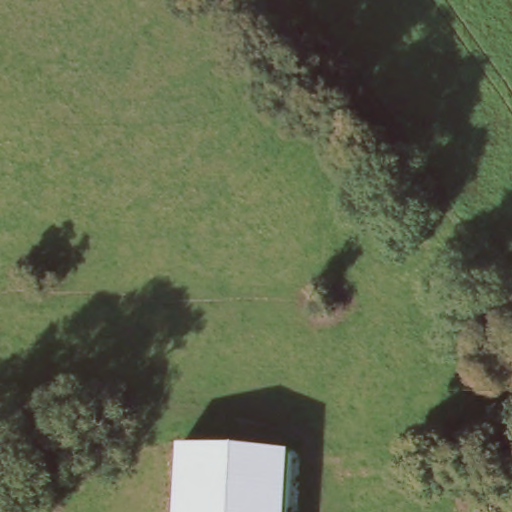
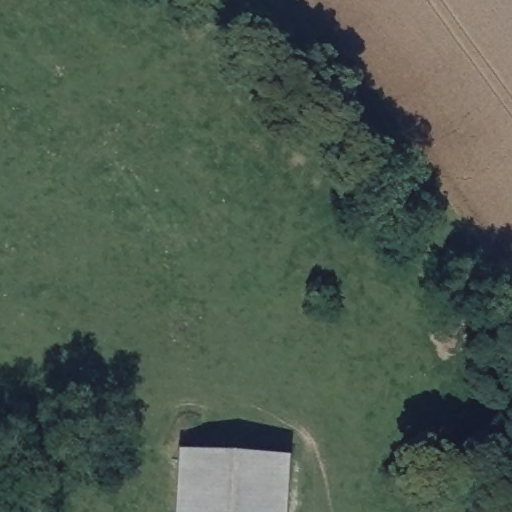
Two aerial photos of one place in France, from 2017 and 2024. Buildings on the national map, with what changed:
unchanged [(290,458),(286,512),(175,512),(178,452),(290,458)]

